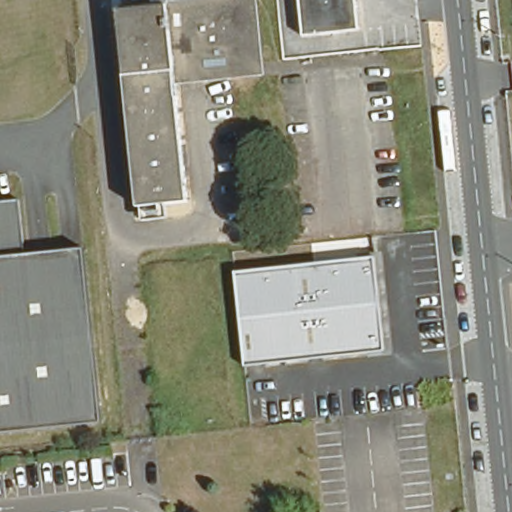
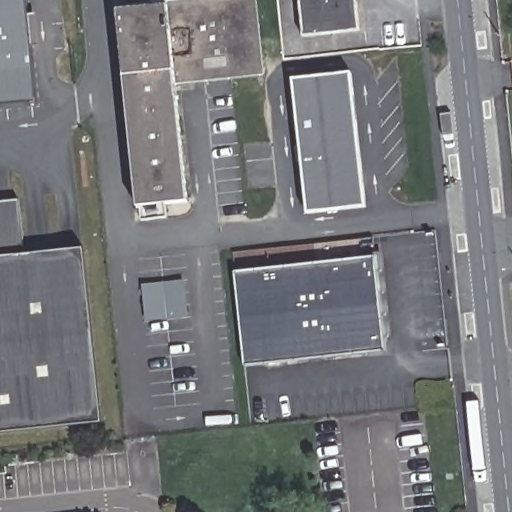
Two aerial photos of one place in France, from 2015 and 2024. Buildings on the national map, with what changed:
new [(29,15),(37,14),(40,46),(32,47),(32,54),(37,104),(0,108),(0,0),(28,0),(29,15)]
unchanged [(175,76),(176,89),(189,204),(138,209),(119,15),(255,0),(262,67),(175,76)]
unchanged [(361,30),(305,36),(302,0),(358,0),(361,30)]
unchanged [(263,80),(176,89),(175,76),(262,67),(263,80)]
new [(365,206),(306,212),(291,80),(350,74),(365,206)]
unchanged [(21,200),(27,255),(86,248),(105,423),(0,434),(0,202),(21,200)]
unchanged [(373,271),(381,350),(240,363),(239,363),(232,285),(373,271)]
new [(186,318),(144,321),(142,285),(185,282),(186,318)]

